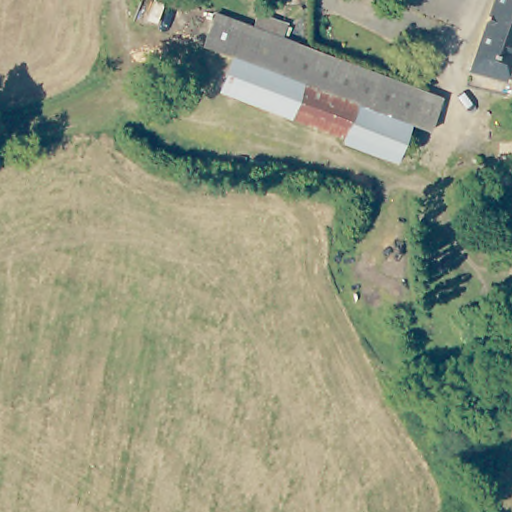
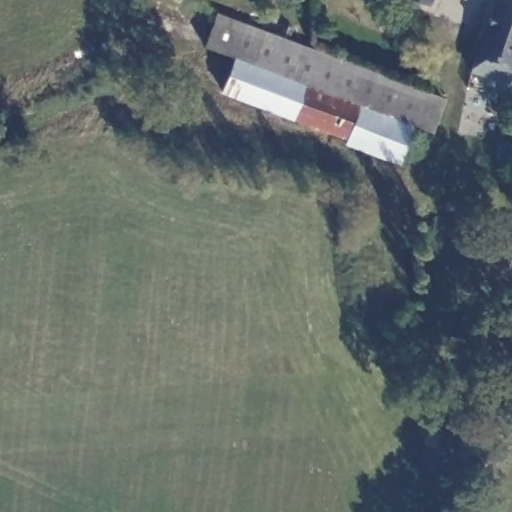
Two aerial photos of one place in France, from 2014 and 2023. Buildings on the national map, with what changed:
unchanged [(503,84),(471,72),(496,0),(512,0),(512,58),(503,84)]
unchanged [(443,99),(431,132),(412,125),(397,162),(345,142),(346,139),(222,91),(234,58),(204,47),(216,14),(443,99)]

